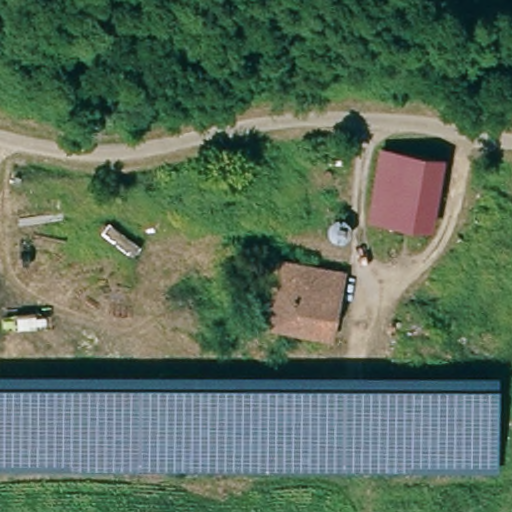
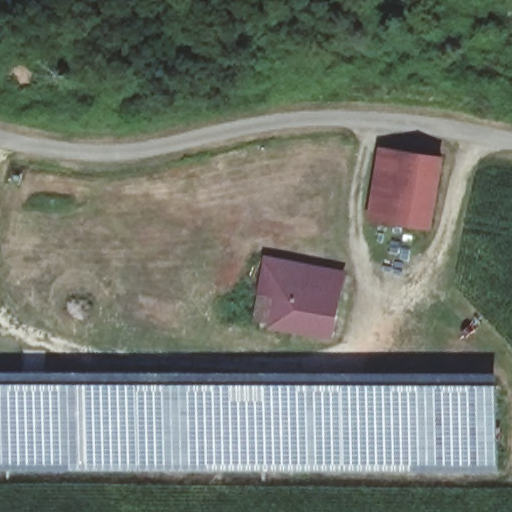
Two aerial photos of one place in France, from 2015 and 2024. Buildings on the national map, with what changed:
unchanged [(376,192),(381,154),(444,162),(432,230),(396,226),(372,223),(376,192)]
unchanged [(22,167),(19,174),(13,171),(16,165),(22,167)]
unchanged [(265,270),(266,264),(343,277),(331,338),(269,328),(257,326),(261,295),(265,270)]
unchanged [(502,385),(404,386),(263,387),(0,390),(0,379),(260,376),(406,375),(502,374),(502,385)]
unchanged [(502,445),(502,469),(461,470),(381,470),(0,474),(0,390),(263,387),(404,386),(502,385),(502,445)]

